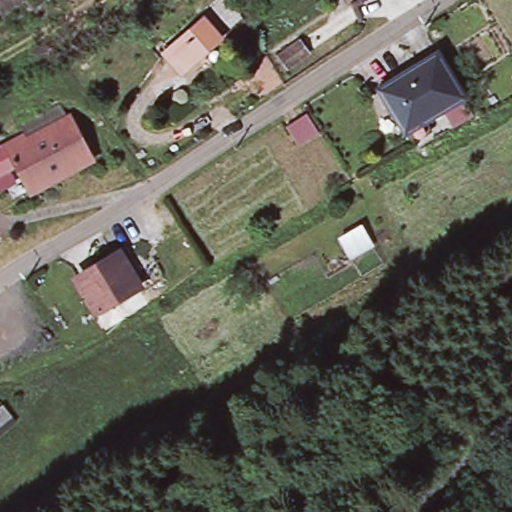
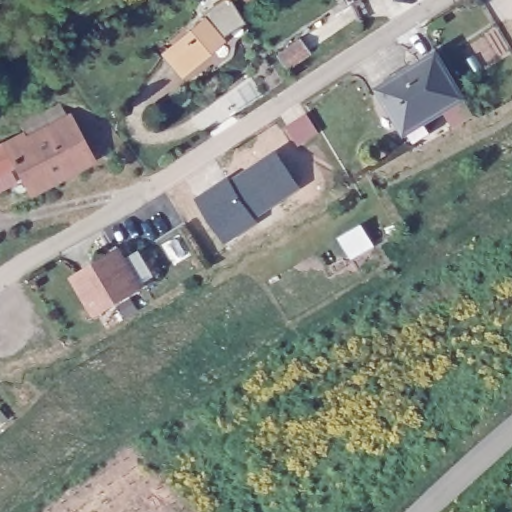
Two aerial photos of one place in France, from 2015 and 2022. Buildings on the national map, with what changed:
unchanged [(167,55),(172,52),(204,25),(217,42),(185,68),(180,72),(167,55)]
unchanged [(300,36),(310,52),(289,66),(278,50),(300,36)]
unchanged [(405,132),(401,124),(378,84),(439,50),(460,90),(414,117),(419,125),(405,132)]
new [(315,135),(295,146),(285,128),(306,116),(315,135)]
unchanged [(69,117),(90,161),(32,189),(21,167),(10,146),(69,117)]
unchanged [(0,177),(0,151),(10,146),(21,167),(0,177)]
new [(297,192),(256,221),(260,225),(225,246),(197,202),(230,181),(275,154),(297,192)]
unchanged [(360,227),(370,246),(347,258),(337,240),(360,227)]
unchanged [(120,254),(140,288),(97,313),(87,297),(90,295),(79,278),(120,254)]

